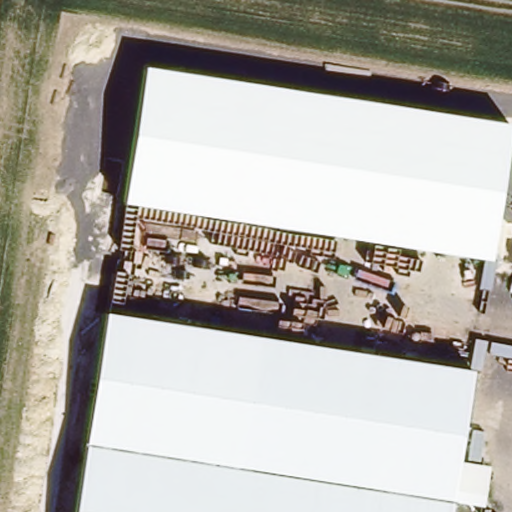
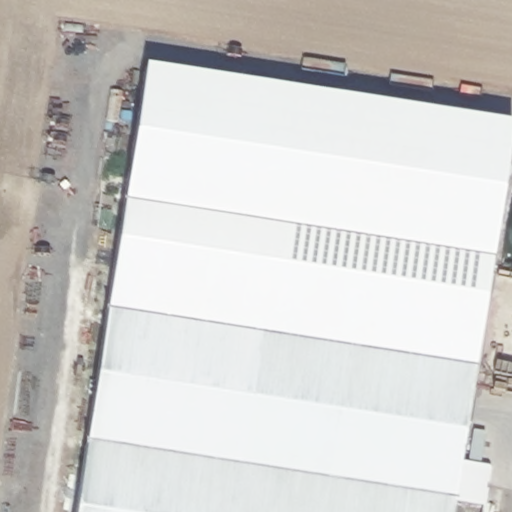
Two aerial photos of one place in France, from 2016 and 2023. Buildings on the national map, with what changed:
unchanged [(146,67),(512,123),(512,133),(493,262),(123,206),(146,67)]
new [(108,315),(123,206),(493,262),(471,366),(108,315)]
unchanged [(471,366),(450,512),(73,512),(108,315),(471,366)]

